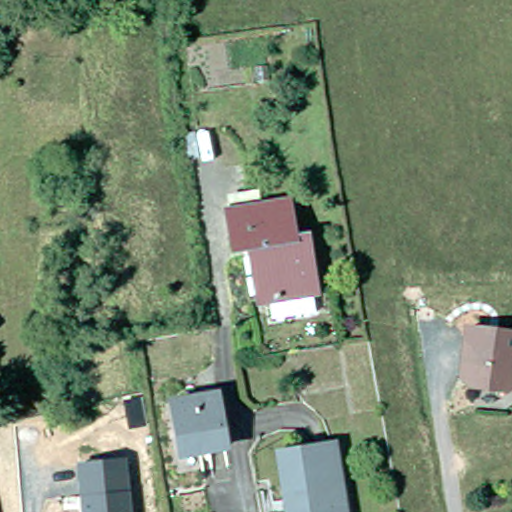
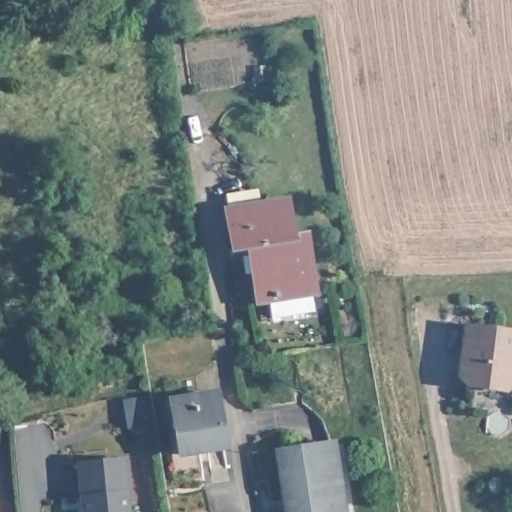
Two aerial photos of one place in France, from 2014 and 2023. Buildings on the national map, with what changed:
unchanged [(270,302),(261,303),(252,250),(236,252),(230,215),(268,209),(290,206),(296,241),(307,239),(316,295),(313,296),(316,315),(286,320),(273,322),(270,302)]
unchanged [(463,394),(455,385),(460,334),(512,338),(512,391),(505,397),(463,394)]
unchanged [(212,446),(187,451),(180,407),(223,399),(232,450),(214,453),(212,446)]
unchanged [(337,445),(349,512),(292,512),(282,453),(337,445)]
unchanged [(134,512),(83,512),(79,462),(130,458),(134,512)]

